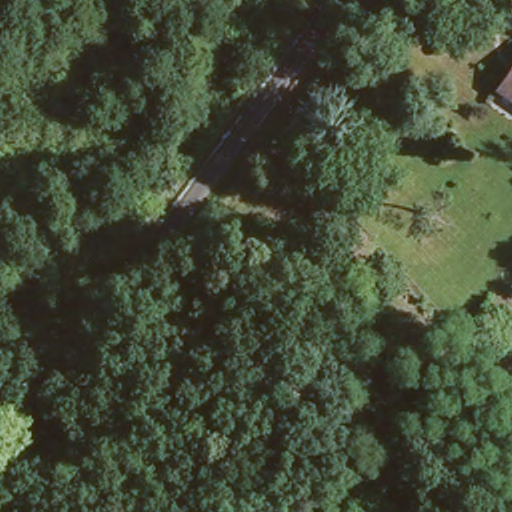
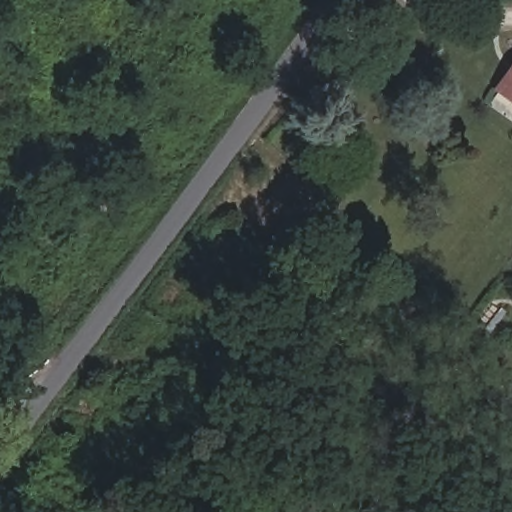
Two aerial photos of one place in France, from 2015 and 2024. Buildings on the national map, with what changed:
unchanged [(499,79),(512,62),(512,89),(499,79)]

